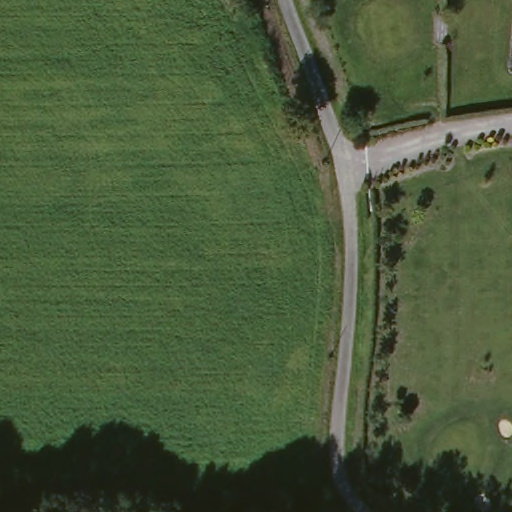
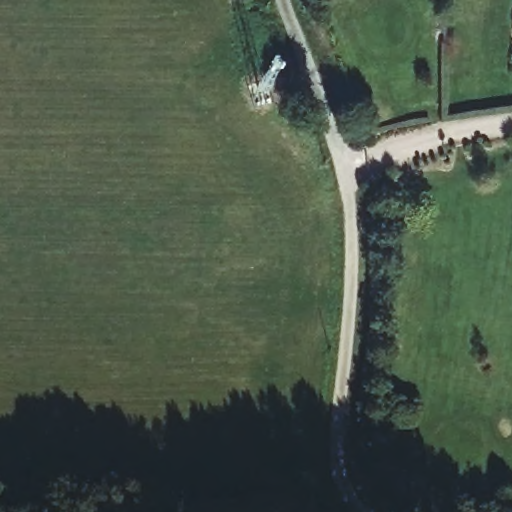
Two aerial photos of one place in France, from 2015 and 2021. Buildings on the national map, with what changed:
[]

